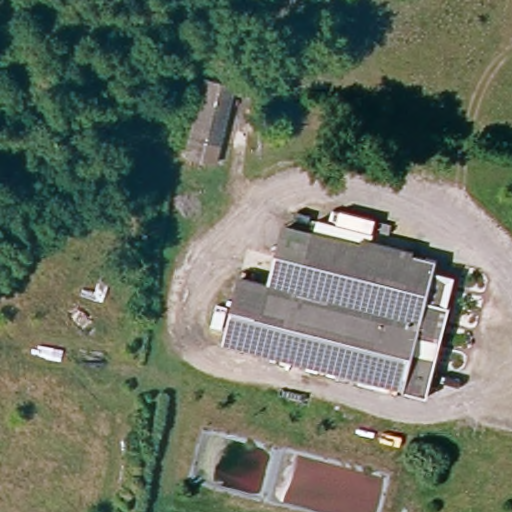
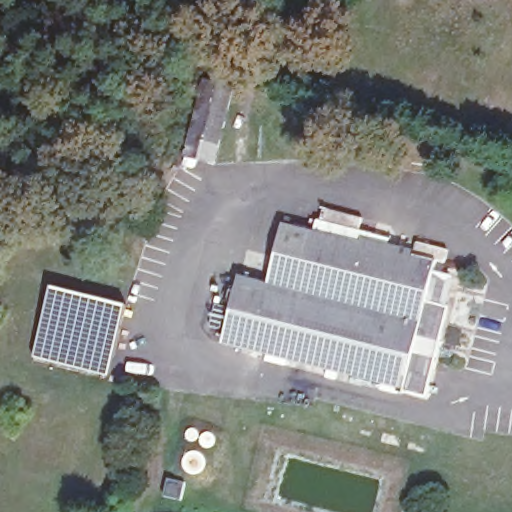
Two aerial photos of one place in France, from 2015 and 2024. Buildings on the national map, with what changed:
unchanged [(207,80),(236,88),(213,166),(185,159),(207,80)]
unchanged [(424,399),(422,398),(251,356),(223,349),(239,284),(262,289),(270,292),(278,254),(283,232),(311,239),(434,268),(429,290),(425,306),(445,311),(440,333),(424,399)]
new [(126,305),(109,377),(34,357),(51,287),(126,305)]
demolished [(152,377),(106,368),(113,323),(161,330),(155,361),(152,377)]

